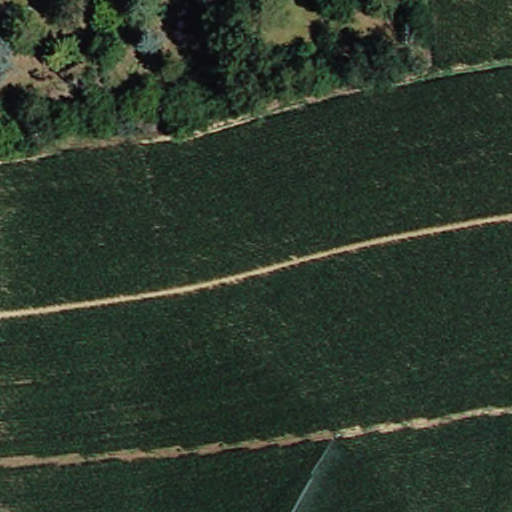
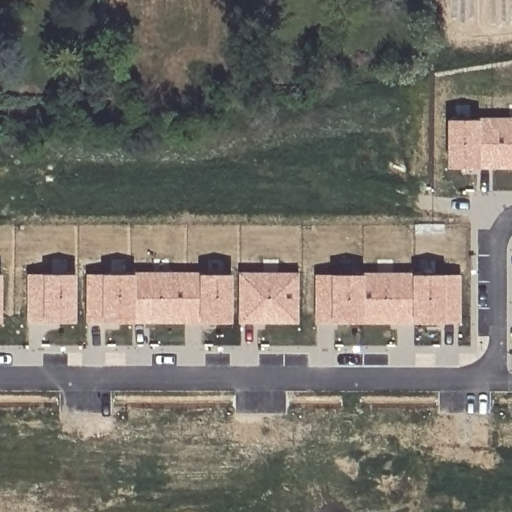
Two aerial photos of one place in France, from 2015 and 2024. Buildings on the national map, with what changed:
new [(478,120),(479,117),(512,117),(512,169),(479,169),(446,169),(446,120),(478,120)]
new [(102,274),(135,274),(135,271),(199,272),(199,274),(231,274),(231,323),(199,323),(133,323),(101,322),(86,323),(85,274),(102,274)]
new [(299,272),(298,323),(239,323),(239,272),(299,272)]
new [(330,275),(363,275),(363,272),(412,272),(412,275),(445,275),(460,275),(460,323),(443,323),(412,323),(363,322),(330,323),(315,323),(315,274),(330,275)]
new [(42,274),(76,275),(75,322),(44,322),(27,322),(27,273),(42,274)]
new [(1,322),(0,322),(0,274),(1,274),(1,322)]

